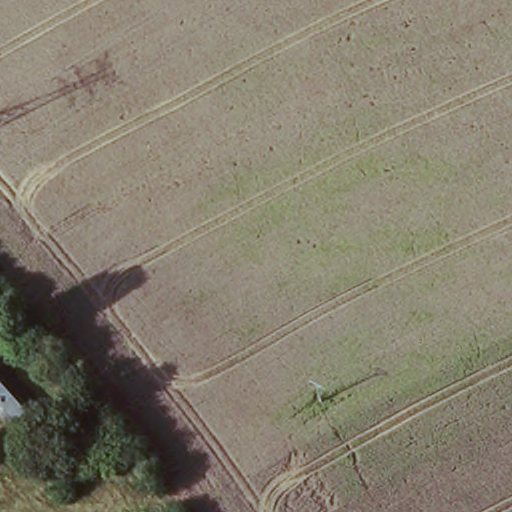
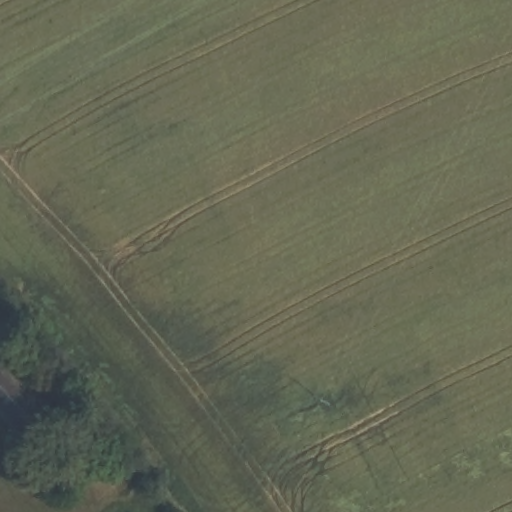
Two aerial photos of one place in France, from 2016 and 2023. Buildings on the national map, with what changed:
unchanged [(2,375),(39,412),(23,430),(0,406),(0,377),(2,375)]

